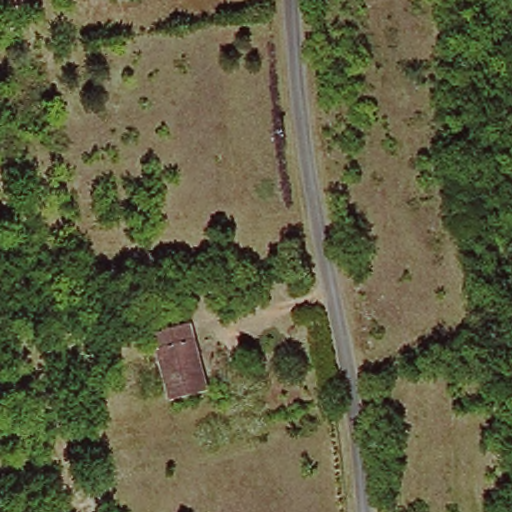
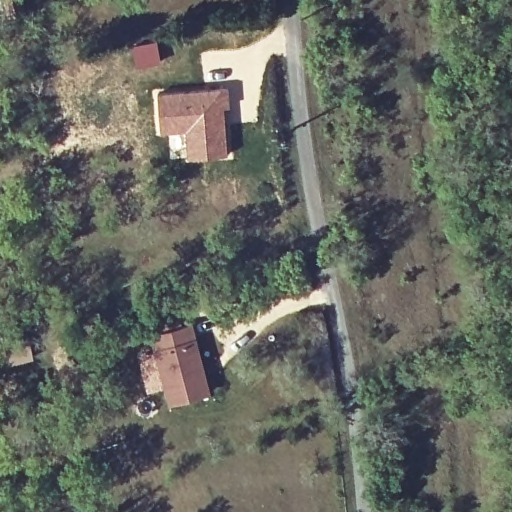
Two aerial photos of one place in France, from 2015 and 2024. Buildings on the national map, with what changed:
new [(156,40),(160,61),(135,66),(131,44),(156,40)]
new [(228,86),(230,106),(224,107),(227,154),(183,159),(180,131),(159,134),(155,91),(228,86)]
unchanged [(192,322),(212,394),(171,405),(152,333),(192,322)]

